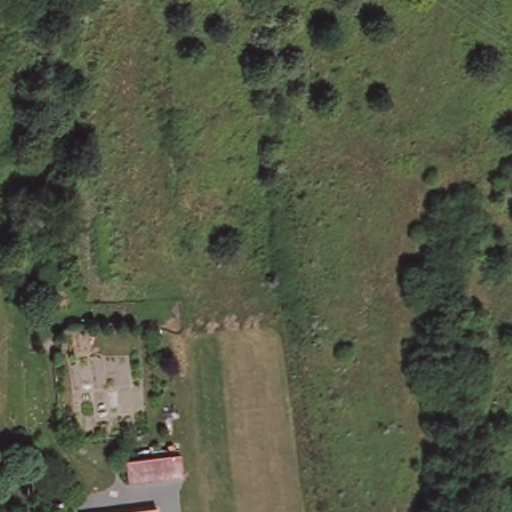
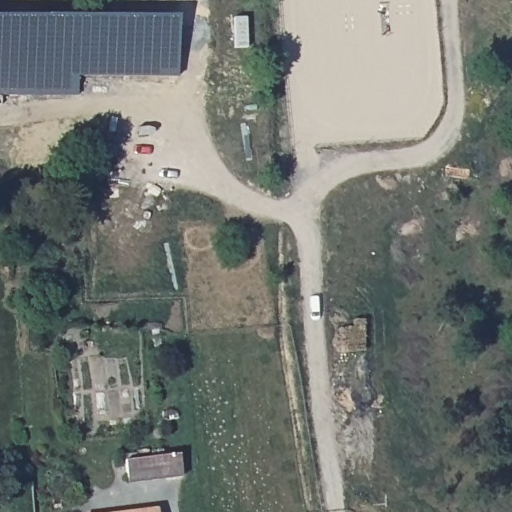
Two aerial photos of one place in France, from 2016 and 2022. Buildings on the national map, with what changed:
new [(51,96),(0,96),(0,16),(51,16),(51,96)]
new [(51,16),(179,16),(179,76),(76,75),(76,96),(51,96),(51,16)]
unchanged [(179,451),(183,478),(126,486),(122,461),(179,451)]
unchanged [(156,512),(134,512),(156,509),(156,512)]

